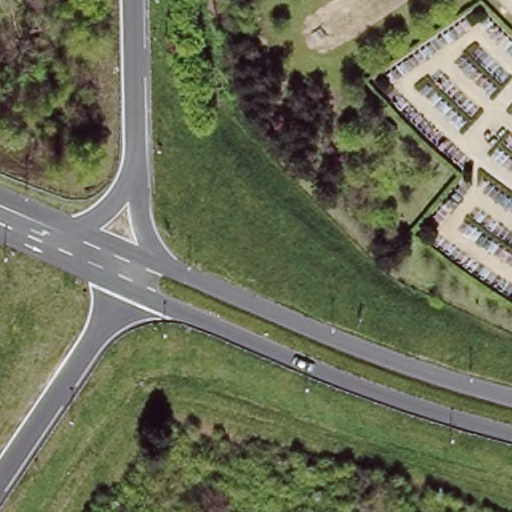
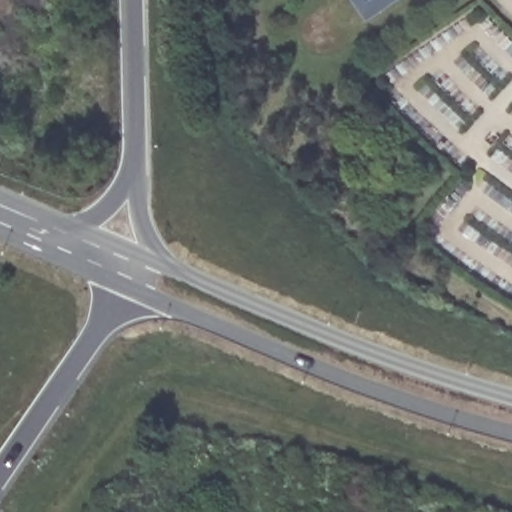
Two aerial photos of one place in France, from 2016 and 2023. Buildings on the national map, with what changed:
new [(353,0),(397,0),(367,20),(353,0)]

